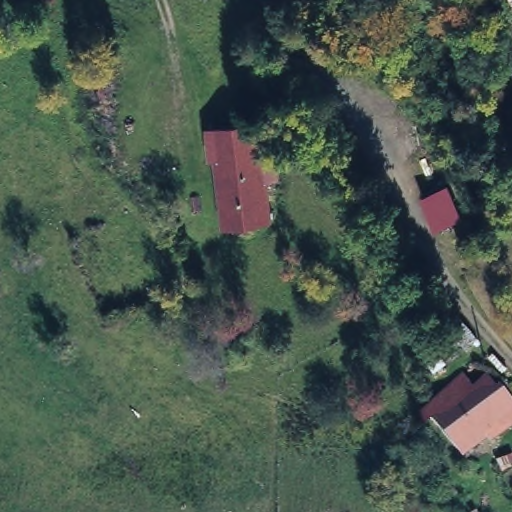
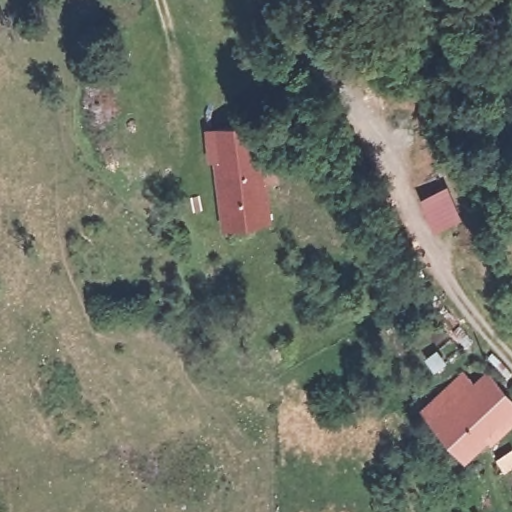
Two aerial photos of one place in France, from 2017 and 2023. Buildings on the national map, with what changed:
unchanged [(242,120),(252,216),(207,220),(198,126),(242,120)]
unchanged [(477,397),(490,385),(512,412),(512,427),(462,466),(423,419),(465,383),(477,397)]

